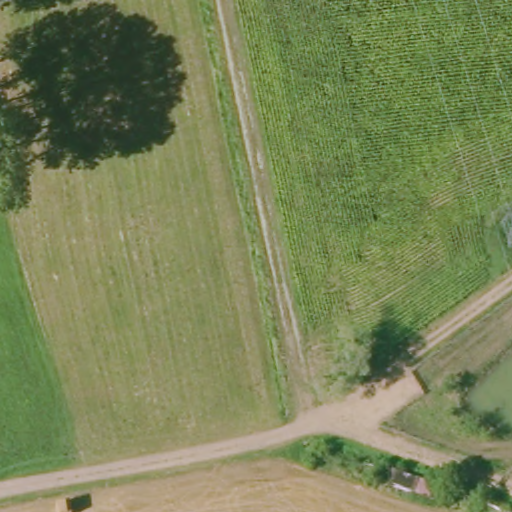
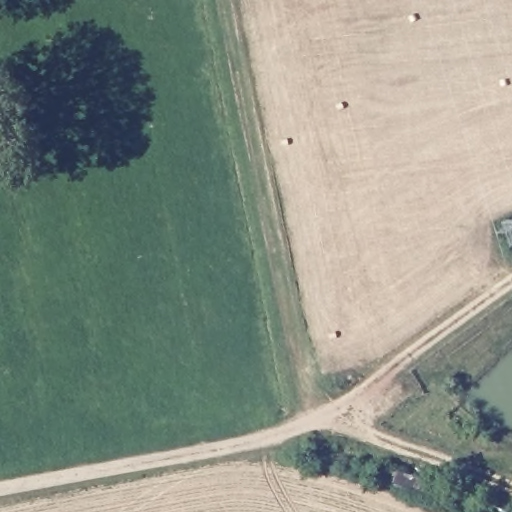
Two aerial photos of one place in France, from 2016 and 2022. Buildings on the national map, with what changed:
unchanged [(450,490),(446,505),(391,486),(395,473),(450,490)]

